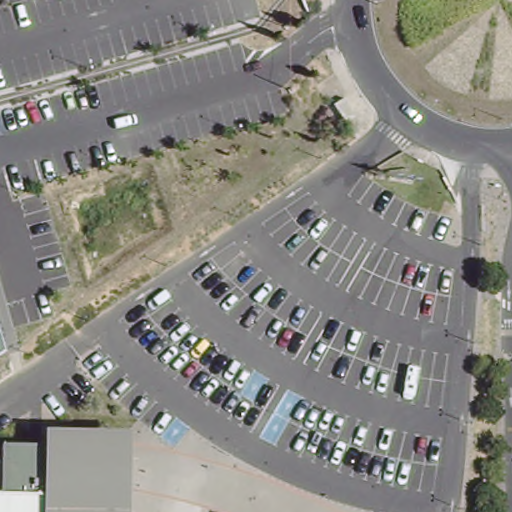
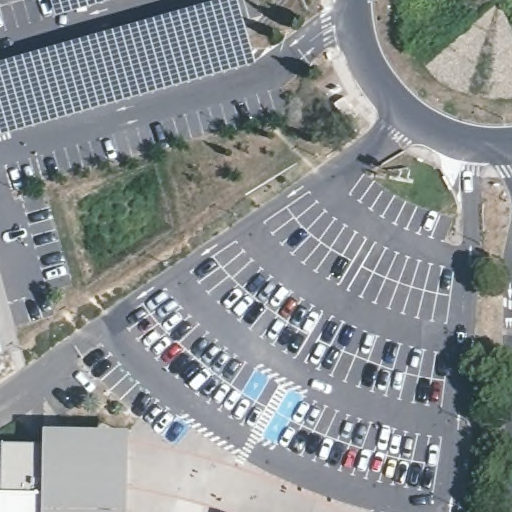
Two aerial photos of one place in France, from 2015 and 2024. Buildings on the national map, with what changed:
new [(257,62),(0,134),(0,64),(225,0),(239,0),(257,62)]
new [(55,15),(51,0),(108,0),(55,15)]
unchanged [(5,351),(0,355),(0,333),(5,351)]
unchanged [(127,428),(125,512),(106,512),(107,475),(70,474),(70,440),(49,440),(50,426),(127,428)]
unchanged [(2,453),(2,439),(49,440),(70,440),(70,474),(107,475),(106,512),(0,512),(0,453),(2,453)]

